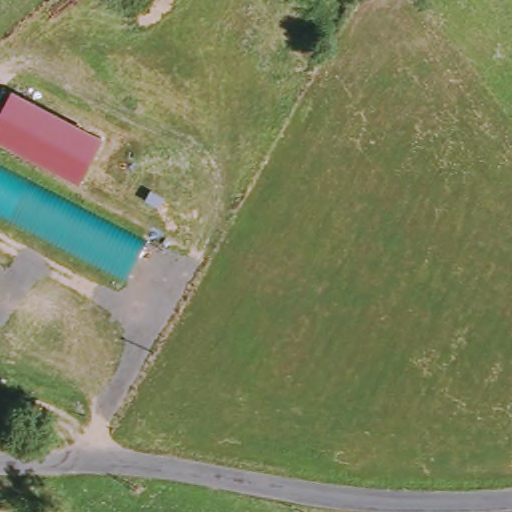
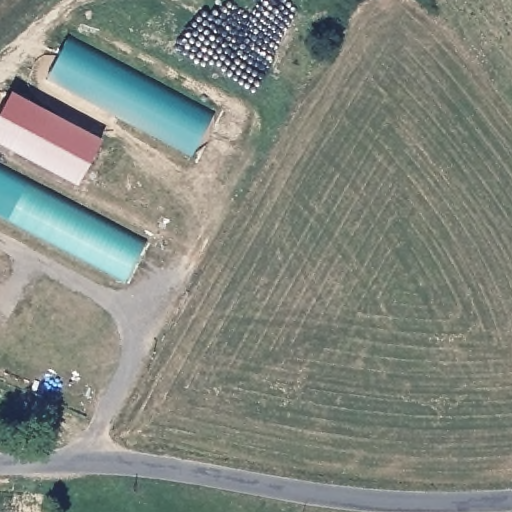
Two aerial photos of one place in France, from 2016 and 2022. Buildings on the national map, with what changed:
new [(50,74),(68,39),(213,117),(195,154),(50,74)]
unchanged [(0,139),(0,115),(13,88),(103,136),(80,182),(0,139)]
unchanged [(126,280),(0,214),(0,165),(145,243),(126,280)]

